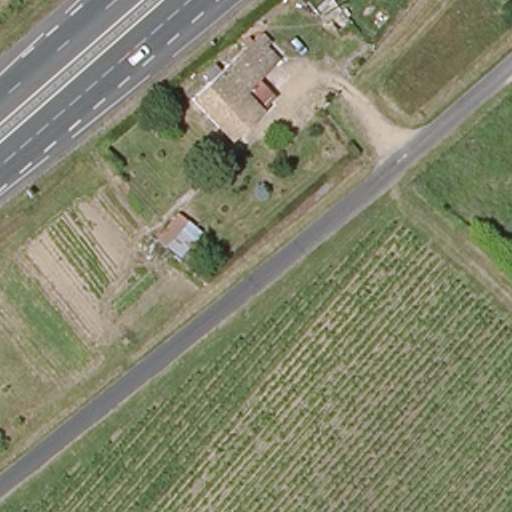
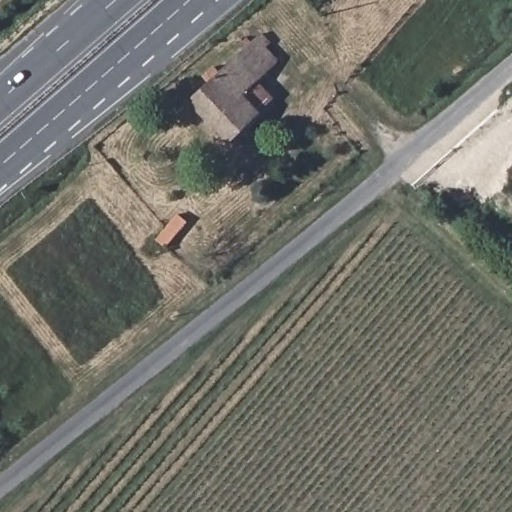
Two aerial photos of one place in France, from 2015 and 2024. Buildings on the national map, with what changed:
unchanged [(270,41),(266,46),(278,60),(258,81),(273,96),(233,136),(195,96),(263,34),(270,41)]
unchanged [(185,222),(165,245),(155,236),(177,213),(185,222)]

